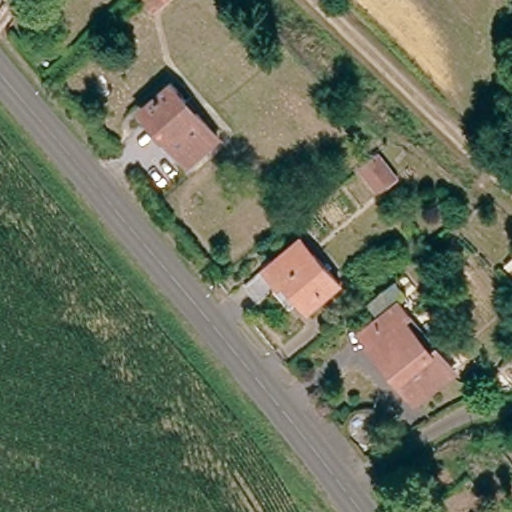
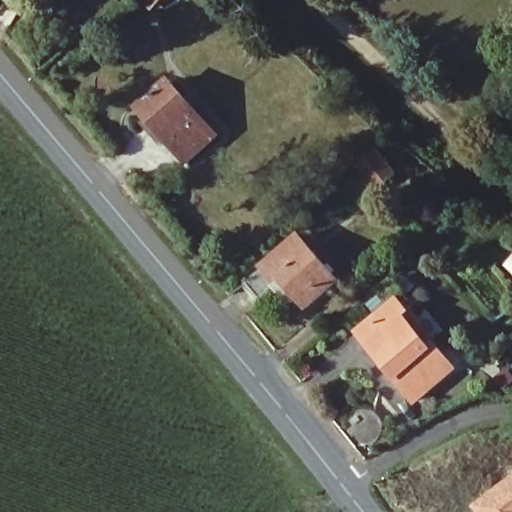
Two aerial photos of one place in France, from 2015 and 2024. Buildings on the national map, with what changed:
unchanged [(143,0),(162,0),(151,9),(143,0)]
unchanged [(170,83),(217,136),(187,162),(141,110),(170,83)]
unchanged [(395,178),(380,190),(366,172),(382,161),(395,178)]
unchanged [(307,307),(285,280),(260,301),(245,283),(265,267),(293,243),(300,237),(313,252),(337,281),(307,307)]
unchanged [(512,271),(504,263),(511,256),(512,255),(512,271)]
unchanged [(381,325),(370,311),(397,289),(408,285),(416,296),(408,302),(398,311),(409,324),(435,356),(455,380),(417,411),(385,371),(371,355),(360,342),(381,325)]
unchanged [(512,389),(505,395),(503,396),(503,395),(491,381),(501,372),(512,385),(512,389)]
unchanged [(377,441),(370,444),(362,445),(358,443),(352,439),(348,433),(348,426),(349,420),(353,414),(360,410),(369,409),(373,411),(379,415),(383,422),(383,429),(382,435),(378,440),(377,441)]
new [(512,512),(474,512),(470,507),(512,474),(512,512)]

